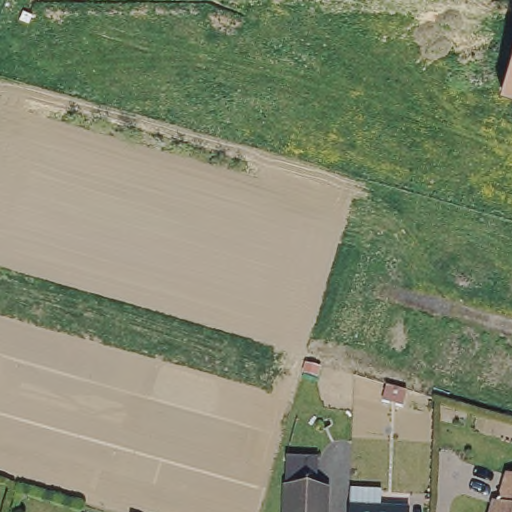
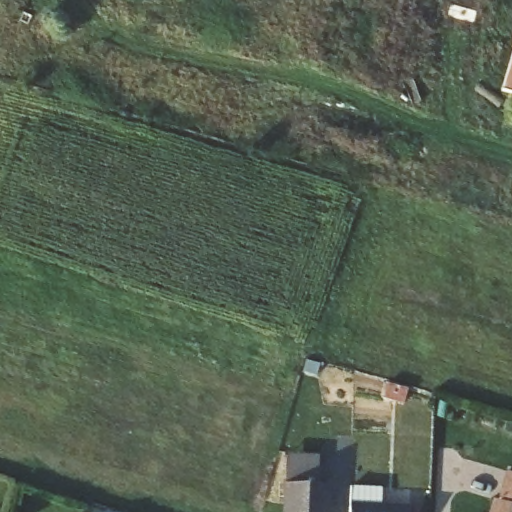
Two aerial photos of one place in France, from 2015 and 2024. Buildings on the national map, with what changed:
unchanged [(502,99),(512,59),(512,101),(502,99)]
unchanged [(412,393),(405,412),(382,405),(387,386),(412,393)]
unchanged [(500,495),(503,496),(512,468),(512,512),(494,512),(500,495)]
unchanged [(282,485),(323,486),(322,512),(282,512),(282,485)]
unchanged [(406,512),(346,512),(347,508),(347,493),(376,493),(376,509),(407,509),(406,512)]

